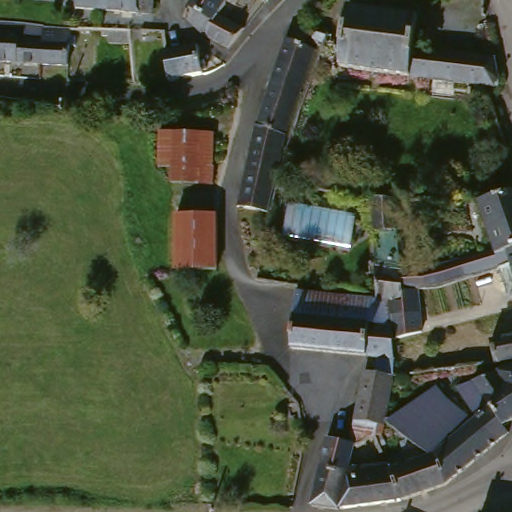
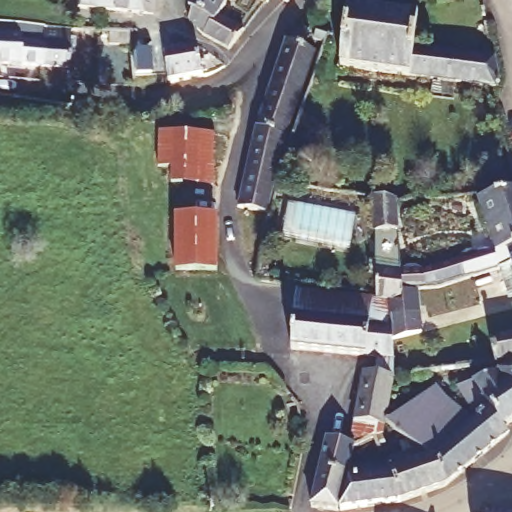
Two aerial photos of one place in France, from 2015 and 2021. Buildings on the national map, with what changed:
unchanged [(77,0),(152,0),(151,18),(76,14),(77,0)]
unchanged [(210,25),(194,16),(189,12),(186,10),(192,0),(226,0),(214,19),(210,25)]
unchanged [(194,16),(210,25),(214,19),(243,36),(224,55),(197,40),(183,26),(189,12),(194,16)]
unchanged [(413,91),(414,82),(334,72),(342,14),(411,22),(407,54),(486,63),(491,82),(488,91),(478,90),(451,86),(451,96),(413,91)]
unchanged [(109,27),(132,29),(132,41),(105,40),(106,27),(109,27)]
unchanged [(304,51),(288,95),(261,85),(277,39),(278,39),(280,40),(291,29),(298,36),(301,40),(296,48),(304,51)]
unchanged [(39,67),(0,64),(0,36),(18,37),(18,40),(41,42),(43,32),(68,35),(65,70),(39,67)]
unchanged [(318,46),(314,45),(308,45),(309,35),(319,36),(318,46)]
unchanged [(158,85),(158,59),(161,59),(188,51),(193,76),(158,85)]
unchanged [(274,135),(256,212),(228,206),(244,132),(261,85),(288,95),(274,135)]
unchanged [(167,135),(206,135),(206,167),(213,167),(211,185),(166,185),(167,135)]
unchanged [(274,194),(266,192),(268,183),(278,184),(274,194)]
unchanged [(508,263),(506,254),(493,258),(478,207),(511,195),(512,195),(512,262),(509,263),(508,263)]
unchanged [(389,362),(285,352),(291,295),(383,301),(369,299),(370,270),(371,270),(376,234),(374,234),(380,199),(402,202),(398,236),(396,272),(396,277),(456,264),(461,278),(469,275),(473,285),(457,290),(454,280),(451,281),(445,283),(442,284),(441,285),(431,286),(422,287),(421,287),(412,289),(415,315),(386,319),(388,343),(389,358),(389,362)]
unchanged [(169,275),(170,220),(209,220),(210,220),(210,275),(204,275),(169,275)]
unchanged [(509,263),(512,262),(512,275),(508,263),(509,263)]
unchanged [(206,346),(200,346),(181,345),(182,302),(206,303),(206,346)]
unchanged [(488,346),(488,345),(505,342),(500,316),(512,313),(512,363),(491,367),(466,371),(433,375),(431,353),(488,346)]
unchanged [(465,429),(461,423),(470,416),(466,410),(479,400),(474,392),(512,368),(512,424),(501,432),(503,436),(462,471),(442,488),(441,485),(432,458),(431,457),(456,437),(465,429)]
unchanged [(408,378),(433,375),(466,371),(468,397),(411,403),(408,378)]
unchanged [(343,478),(333,512),(308,507),(317,469),(321,443),(346,447),(359,376),(387,381),(380,422),(378,433),(369,437),(378,456),(345,468),(343,474),(386,470),(388,473),(397,503),(336,512),(345,479),(343,478)]
unchanged [(456,437),(431,457),(383,424),(398,400),(456,437)]
unchanged [(210,423),(203,423),(203,415),(210,415),(210,423)]
unchanged [(397,503),(388,473),(432,458),(441,485),(442,488),(397,503)]

